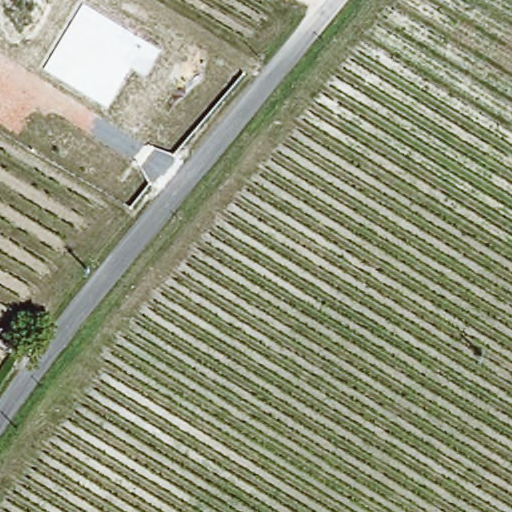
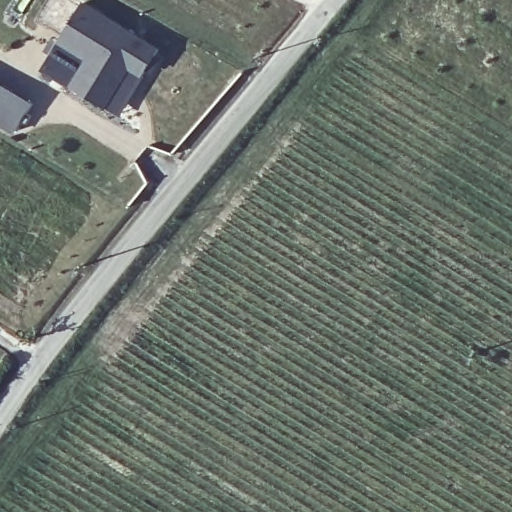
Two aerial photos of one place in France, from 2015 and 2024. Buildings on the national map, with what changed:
new [(108,107),(71,85),(43,69),(58,43),(84,0),(162,45),(145,75),(121,116),(108,107)]
new [(31,102),(15,133),(0,124),(0,83),(31,102)]

